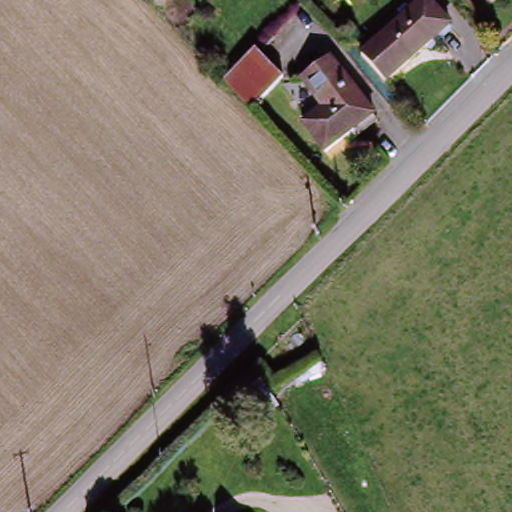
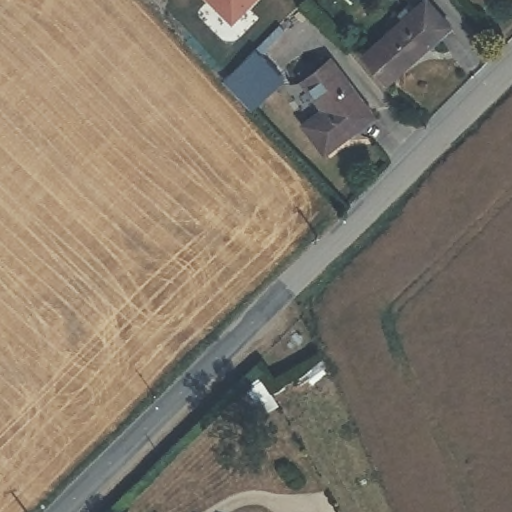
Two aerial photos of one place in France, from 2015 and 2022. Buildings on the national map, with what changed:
new [(231,24),(207,0),(254,0),(231,24)]
unchanged [(381,35),(418,0),(427,0),(447,22),(406,62),(405,60),(381,35)]
unchanged [(405,60),(383,80),(358,57),(381,35),(405,60)]
unchanged [(218,78),(250,44),(282,74),(251,107),(218,78)]
unchanged [(372,112),(330,152),(305,124),(321,108),(299,83),(324,59),(372,112)]

